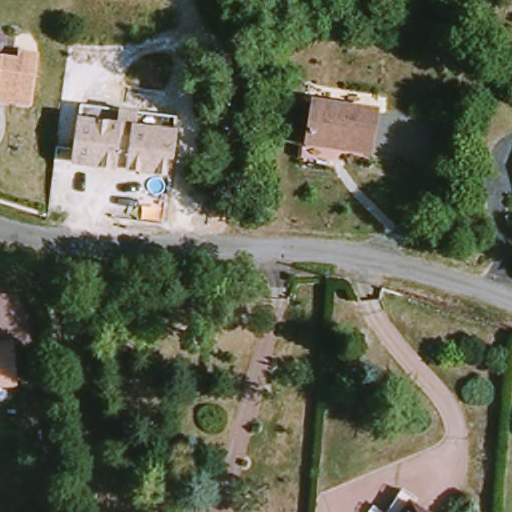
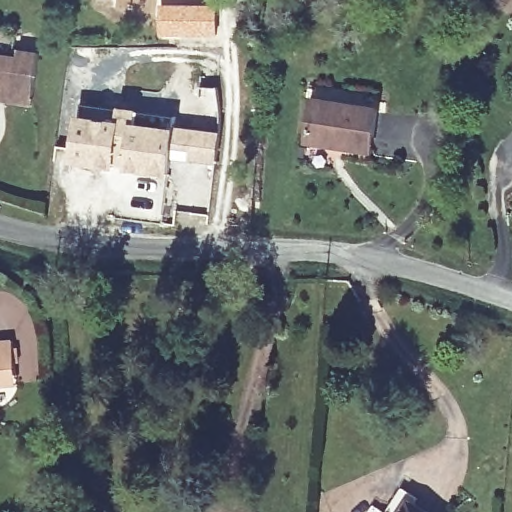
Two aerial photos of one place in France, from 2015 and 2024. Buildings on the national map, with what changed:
new [(157,3),(219,4),(217,36),(156,38),(157,3)]
unchanged [(0,56),(20,58),(20,51),(40,53),(35,95),(35,104),(0,100),(0,56)]
unchanged [(386,108),(382,151),(318,145),(322,101),(386,108)]
unchanged [(169,172),(74,161),(80,104),(175,115),(169,172)]
unchanged [(27,368),(29,382),(0,385),(0,343),(26,340),(27,368)]
unchanged [(433,512),(399,512),(408,497),(433,512)]

